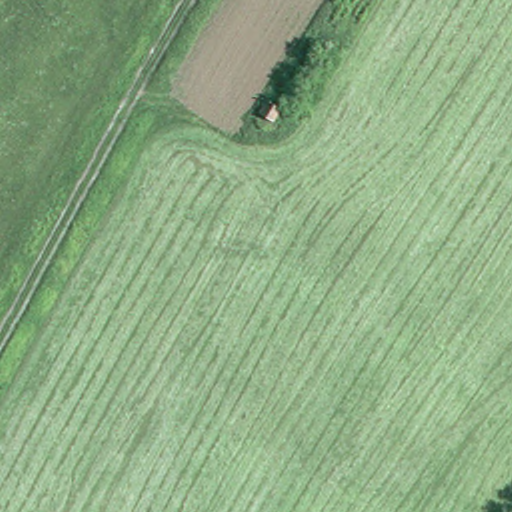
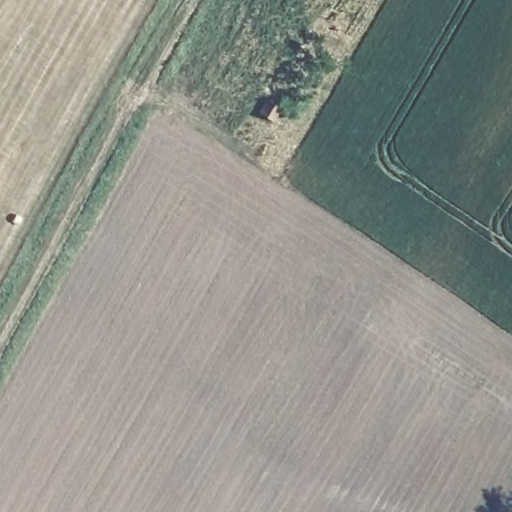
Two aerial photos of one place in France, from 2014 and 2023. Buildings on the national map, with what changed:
unchanged [(269,119),(258,111),(265,100),(276,107),(269,119)]

